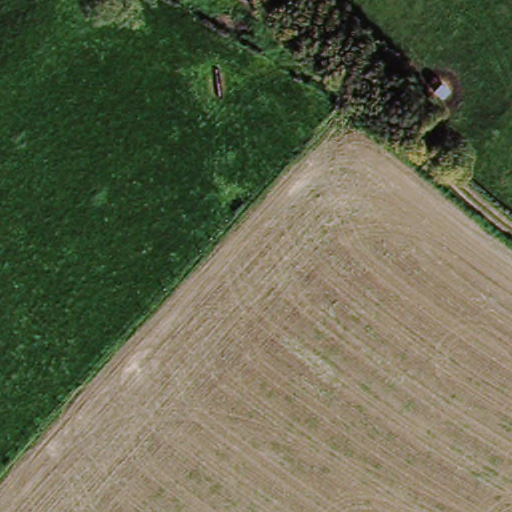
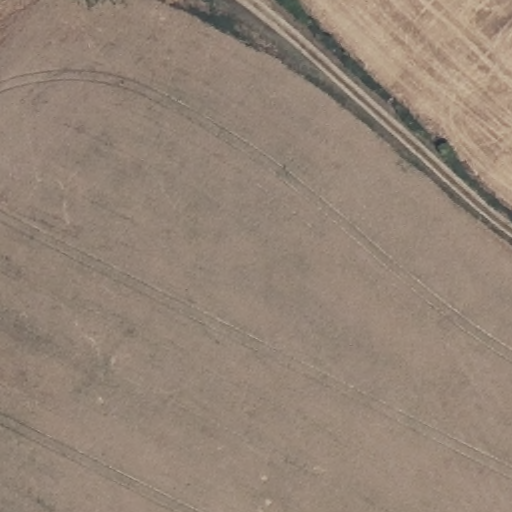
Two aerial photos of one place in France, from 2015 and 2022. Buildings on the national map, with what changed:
[]

